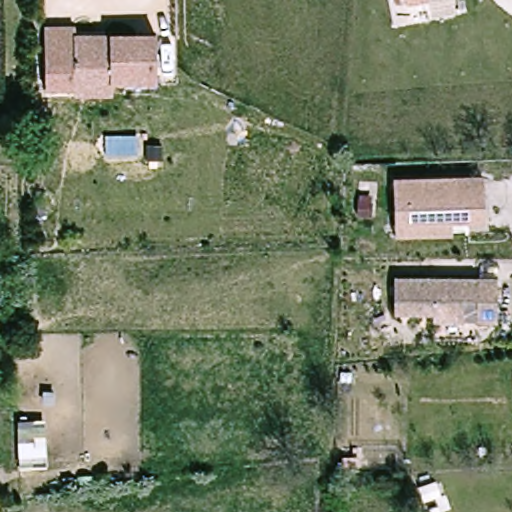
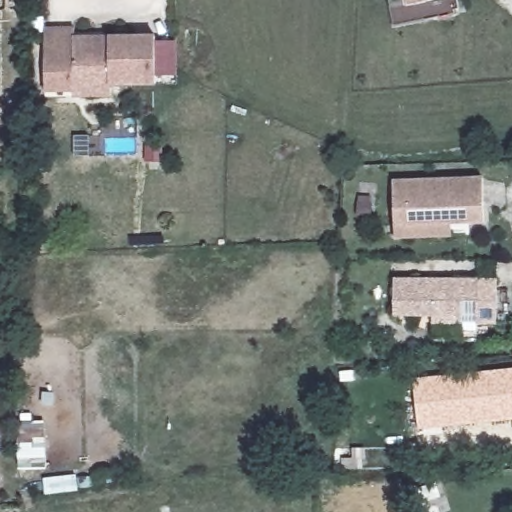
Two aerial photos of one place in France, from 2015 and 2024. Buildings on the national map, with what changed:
unchanged [(405,6),(404,0),(424,0),(425,3),(405,6)]
unchanged [(73,30),(73,43),(73,65),(44,65),(44,30),(73,30)]
unchanged [(46,94),(46,89),(44,89),(44,65),(73,65),(73,43),(103,42),(103,36),(155,35),(155,83),(109,84),(113,84),(114,99),(74,99),(74,94),(46,94)]
new [(178,76),(155,76),(155,43),(177,41),(178,76)]
unchanged [(397,235),(397,223),(397,178),(486,177),(486,222),(453,223),(453,235),(397,235)]
unchanged [(433,321),(433,314),(395,313),(396,278),(498,280),(497,323),(477,322),(478,300),(463,299),(463,314),(462,322),(433,321)]
new [(414,379),(512,370),(512,420),(419,429),(414,379)]
new [(22,423),(22,414),(33,414),(33,422),(46,421),(49,469),(19,471),(18,424),(22,423)]

